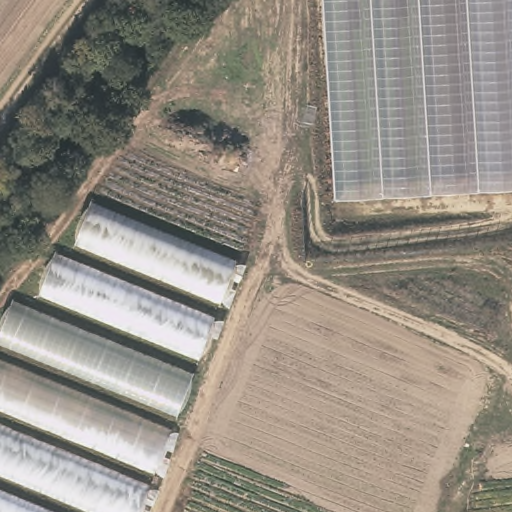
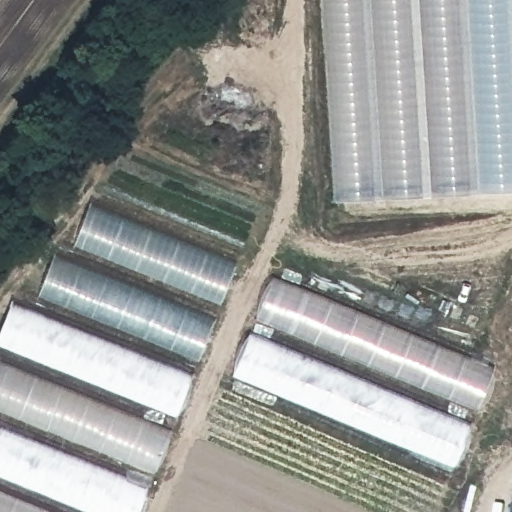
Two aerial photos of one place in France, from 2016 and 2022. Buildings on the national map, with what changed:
unchanged [(322,0),(512,0),(512,190),(335,200),(322,0)]
unchanged [(234,262),(219,303),(75,245),(91,203),(234,262)]
unchanged [(41,295),(55,256),(211,320),(197,360),(41,295)]
new [(492,367),(454,464),(233,372),(273,277),(492,367)]
unchanged [(175,417),(0,348),(0,337),(13,304),(191,372),(175,417)]
unchanged [(157,471),(0,412),(0,360),(174,426),(157,471)]
unchanged [(103,512),(0,471),(0,429),(150,489),(141,512),(103,512)]
unchanged [(0,512),(0,494),(46,512),(0,512)]

